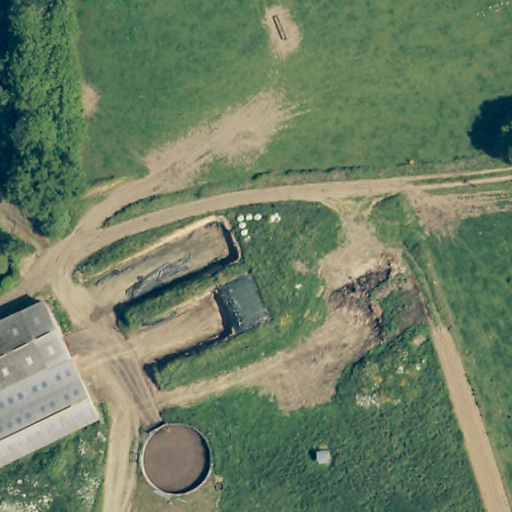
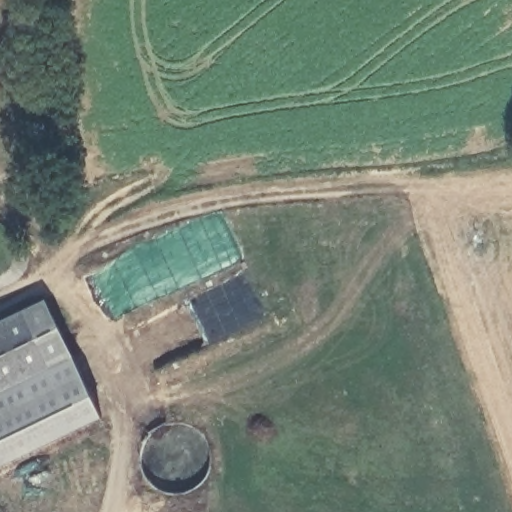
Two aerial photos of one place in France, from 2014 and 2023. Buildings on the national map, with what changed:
unchanged [(66,339),(82,370),(105,417),(49,445),(21,459),(0,470),(0,325),(48,301),(66,339)]

